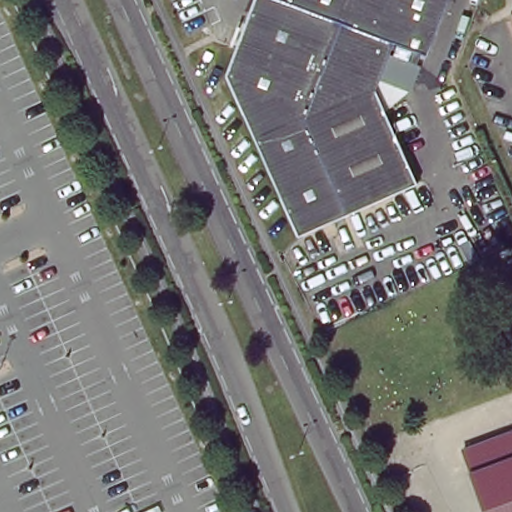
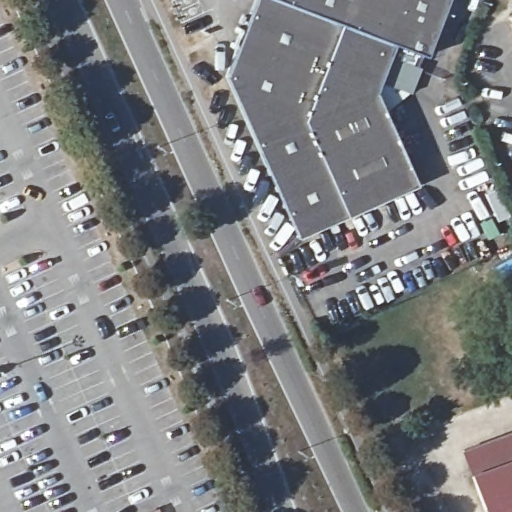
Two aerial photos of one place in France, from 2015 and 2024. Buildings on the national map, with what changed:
unchanged [(449,0),(431,46),(426,60),(393,47),(375,94),(412,182),(294,237),(223,74),(251,0),(449,0)]
unchanged [(507,18),(512,15),(512,30),(507,18)]
unchanged [(461,445),(512,425),(512,512),(486,512),(461,445)]

